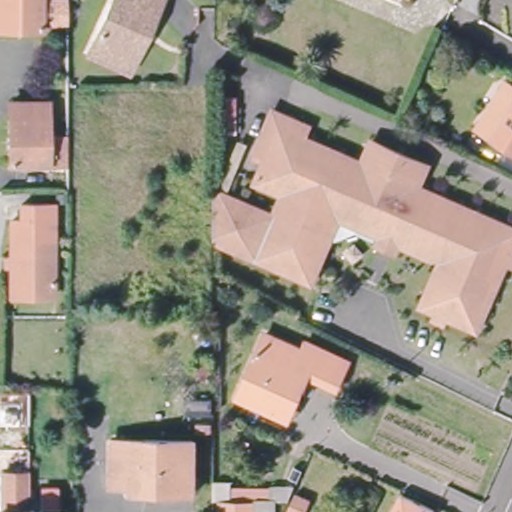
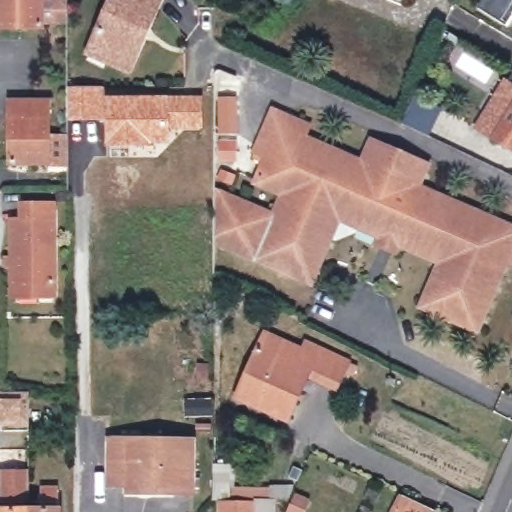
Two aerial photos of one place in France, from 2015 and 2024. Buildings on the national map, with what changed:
unchanged [(0,27),(0,0),(41,0),(41,27),(0,27)]
unchanged [(93,36),(104,0),(151,0),(146,16),(141,33),(136,49),(132,63),(90,49),(93,36)]
new [(507,25),(478,7),(483,0),(512,0),(512,18),(507,25)]
new [(67,85),(105,85),(105,95),(105,120),(67,119),(67,85)]
unchanged [(495,145),(477,135),(503,90),(512,95),(512,156),(495,145)]
new [(105,95),(204,95),(203,129),(170,130),(166,142),(106,145),(105,120),(105,95)]
new [(217,95),(237,95),(235,162),(217,160),(217,95)]
new [(415,98),(442,110),(430,137),(403,124),(415,98)]
unchanged [(47,99),(49,159),(12,159),(12,100),(47,99)]
unchanged [(431,322),(435,313),(422,307),(440,267),(399,249),(394,259),(376,250),(380,241),(359,230),(355,237),(340,243),(332,241),(311,285),(215,240),(215,212),(215,193),(276,220),(285,198),(260,185),(271,162),(260,156),(265,144),(278,114),(315,131),(310,142),(365,167),(373,147),(426,170),(417,190),(512,233),(512,249),(510,254),(512,256),(512,274),(503,269),(476,332),(450,319),(445,329),(431,322)]
unchanged [(15,286),(15,221),(22,220),(22,205),(55,204),(56,295),(36,295),(15,295),(15,286)]
unchanged [(306,351),(310,345),(351,363),(340,390),(311,376),(290,420),(240,398),(268,334),(306,351)]
unchanged [(30,424),(0,424),(0,392),(30,392),(30,424)]
unchanged [(125,481),(110,480),(112,437),(194,438),(193,489),(172,489),(125,489),(125,481)]
unchanged [(7,476),(35,477),(35,510),(45,511),(45,495),(62,495),(63,512),(6,512),(7,476)]
unchanged [(284,494),(276,512),(219,512),(219,495),(284,494)]
unchanged [(434,512),(394,512),(402,497),(435,512),(434,512)]

